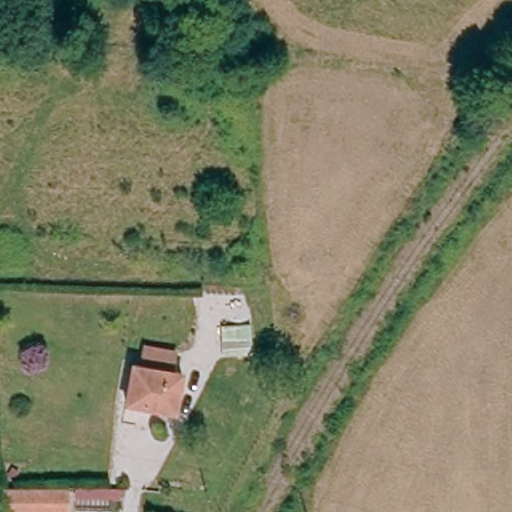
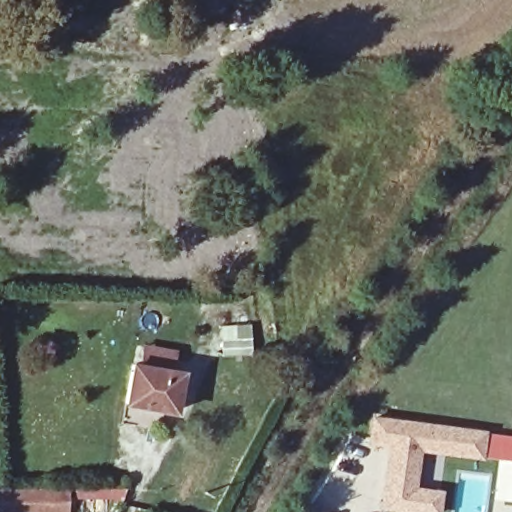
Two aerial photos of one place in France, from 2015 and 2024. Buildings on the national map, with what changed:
demolished [(252,291),(251,306),(241,305),(239,321),(201,316),(202,285),(252,291)]
unchanged [(126,404),(132,362),(142,363),(144,344),(179,349),(176,369),(185,371),(179,414),(126,404)]
new [(422,451),(417,488),(446,491),(443,512),(396,512),(381,510),(389,448),(367,445),(371,416),(488,431),(485,460),(422,451)]
unchanged [(55,512),(0,512),(0,492),(66,486),(67,511),(55,512)]

